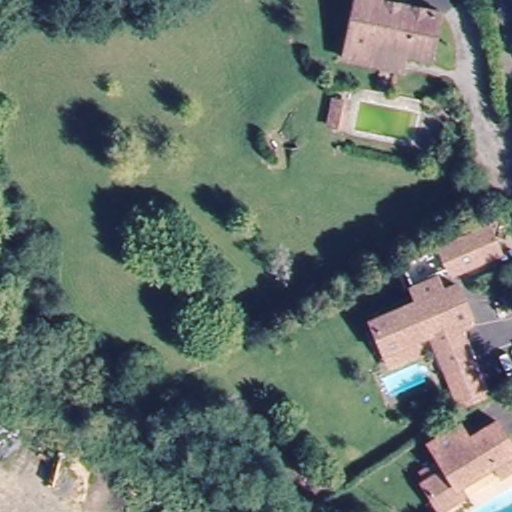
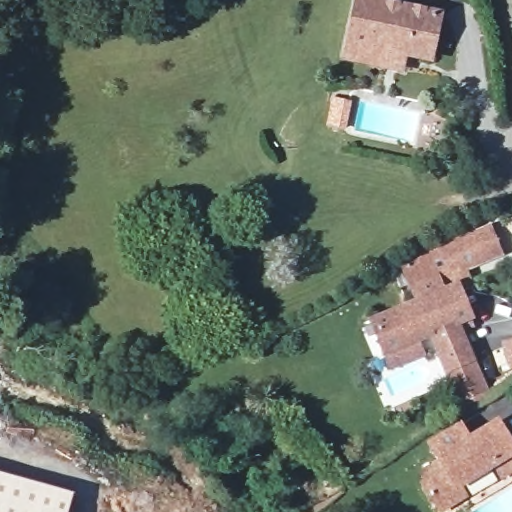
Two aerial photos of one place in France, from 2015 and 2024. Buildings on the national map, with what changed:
unchanged [(369,70),(343,66),(354,2),(354,0),(384,0),(383,7),(441,16),(433,62),(402,57),(400,75),(369,70)]
unchanged [(355,144),(352,162),(336,159),(339,141),(355,144)]
unchanged [(492,214),(507,247),(458,279),(440,247),(476,224),(492,214)]
unchanged [(413,299),(408,287),(432,273),(440,288),(450,283),(471,322),(455,333),(469,361),(441,377),(426,355),(396,375),(369,327),(413,299)]
new [(501,373),(496,356),(504,353),(500,342),(512,338),(512,370),(501,373)]
unchanged [(505,452),(512,463),(512,469),(491,482),(482,467),(460,483),(466,494),(440,512),(422,485),(447,467),(439,455),(431,443),(457,426),(465,438),(488,424),(505,452)]
new [(67,512),(0,512),(0,472),(72,492),(67,512)]

